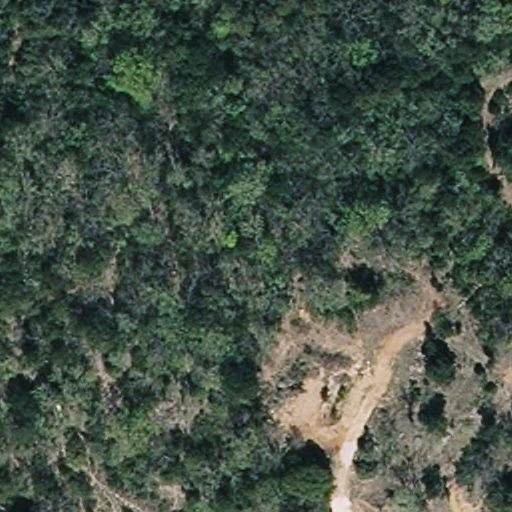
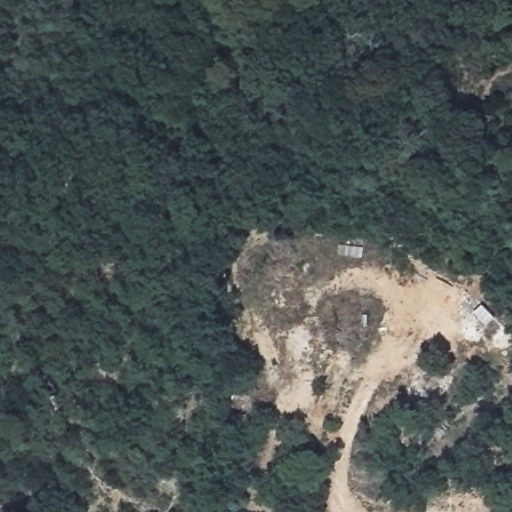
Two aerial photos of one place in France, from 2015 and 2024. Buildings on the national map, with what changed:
[]

